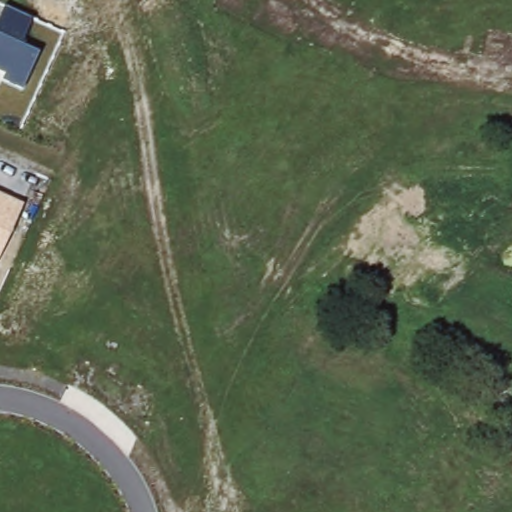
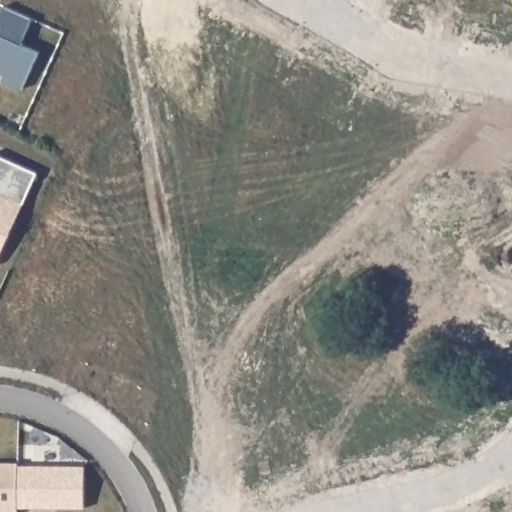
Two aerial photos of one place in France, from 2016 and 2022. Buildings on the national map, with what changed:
unchanged [(5,6),(32,18),(21,44),(38,52),(23,88),(0,78),(3,72),(0,71),(0,17),(5,6)]
new [(0,193),(0,155),(37,173),(23,204),(0,193)]
unchanged [(23,204),(0,254),(0,193),(23,204)]
new [(16,466),(16,468),(16,510),(16,512),(0,512),(0,466),(16,466)]
new [(16,468),(82,469),(82,510),(16,510),(16,468)]

